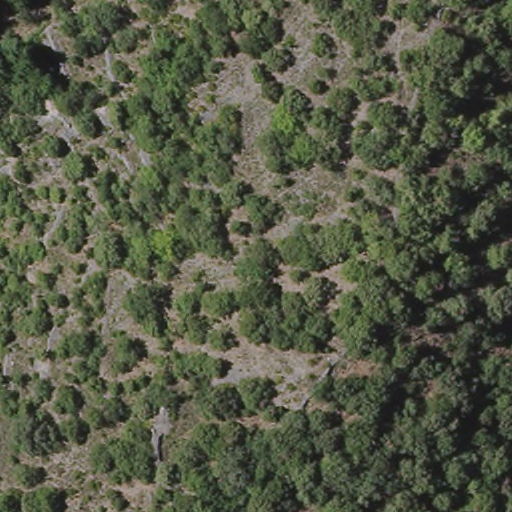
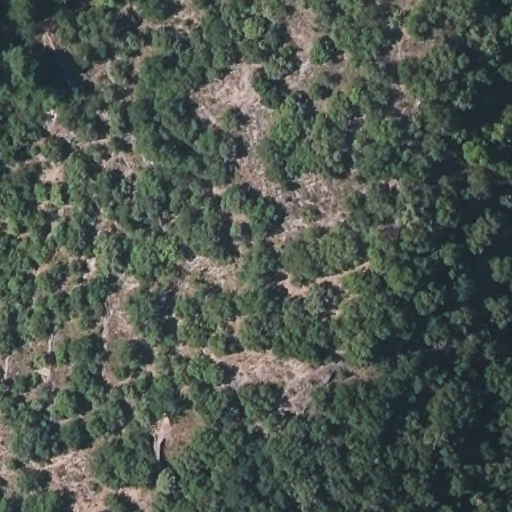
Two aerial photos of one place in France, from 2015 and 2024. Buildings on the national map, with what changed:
[]

